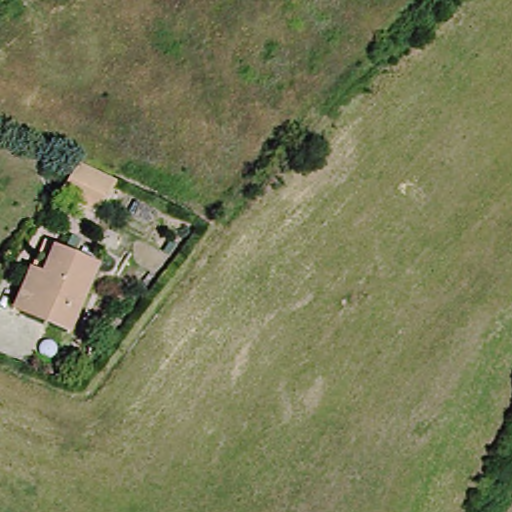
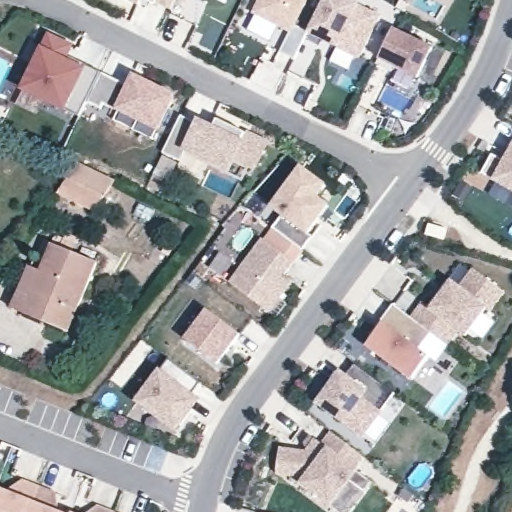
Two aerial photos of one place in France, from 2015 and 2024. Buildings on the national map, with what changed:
new [(127,0),(143,0),(139,6),(127,0)]
new [(157,5),(147,0),(176,0),(171,11),(157,5)]
new [(308,34),(295,62),(280,55),(291,31),(253,14),(260,0),(309,0),(296,26),(308,34)]
new [(348,0),(380,16),(360,59),(333,46),(336,41),(328,36),(325,42),(309,34),(326,0),(348,0)]
new [(394,31),(431,50),(414,79),(391,67),(388,72),(375,65),(378,60),(394,31)]
new [(35,52),(40,55),(47,41),(67,51),(61,65),(80,74),(82,69),(98,77),(77,121),(16,91),(35,52)]
new [(159,132),(117,111),(102,104),(99,111),(88,104),(103,72),(128,86),(133,74),(178,97),(159,132)]
new [(198,120),(214,127),(218,120),(246,135),(247,131),(271,143),(257,173),(234,160),(227,174),(185,152),(180,162),(168,182),(153,174),(163,154),(181,116),(198,120)]
new [(489,153),(502,160),(511,144),(509,143),(512,137),(512,189),(479,171),(489,153)]
unchanged [(117,182),(102,206),(62,187),(78,162),(117,182)]
new [(280,216),(269,208),(300,165),(327,186),(319,197),(330,207),(309,233),(314,237),(287,274),(295,282),(270,313),(230,282),(280,216)]
unchanged [(27,267),(39,271),(51,244),(95,263),(62,332),(18,312),(8,307),(27,267)]
new [(420,301),(426,305),(437,290),(440,292),(449,280),(457,287),(472,267),(502,290),(487,309),(483,306),(463,333),(455,328),(444,343),(428,331),(409,316),(420,301)]
new [(373,326),(378,320),(390,302),(409,316),(428,331),(416,347),(426,355),(410,377),(365,343),(375,328),(373,326)]
new [(208,309),(241,337),(217,367),(184,338),(208,309)]
new [(161,421),(134,400),(167,357),(198,381),(189,393),(191,395),(197,398),(188,411),(178,425),(173,430),(161,421)]
new [(338,371),(342,374),(352,361),(392,391),(360,433),(316,401),(338,371)]
new [(273,472),(276,447),(303,450),(312,437),(319,442),(328,431),(360,454),(351,466),(354,468),(370,481),(362,492),(346,480),(332,497),(327,503),(298,482),(303,476),(273,472)]
new [(5,491),(20,478),(37,485),(26,512),(0,512),(0,489),(5,491)]
new [(54,492),(57,511),(60,512),(26,512),(37,485),(54,492)]
new [(95,505),(112,511),(112,512),(86,512),(95,505)]

